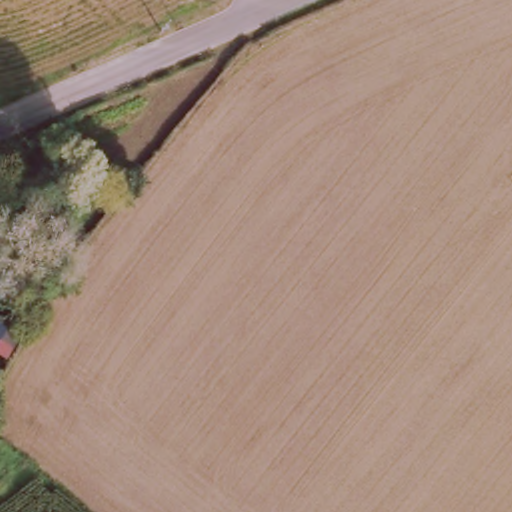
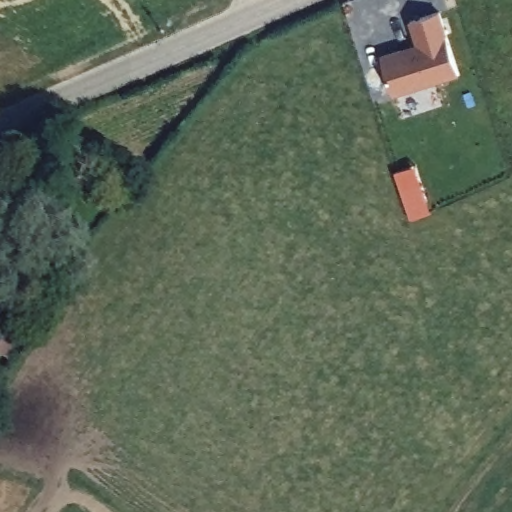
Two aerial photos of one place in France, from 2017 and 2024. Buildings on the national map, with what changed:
new [(447,35),(459,75),(394,95),(381,54),(417,43),(409,19),(440,10),(447,35)]
new [(432,211),(410,219),(395,172),(415,165),(432,211)]
unchanged [(19,334),(10,349),(0,344),(0,331),(4,324),(19,334)]

